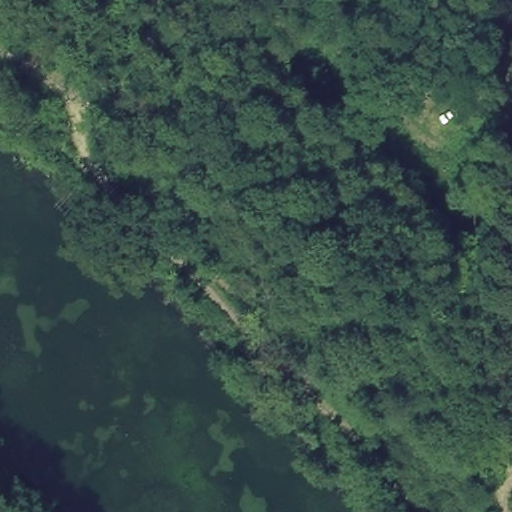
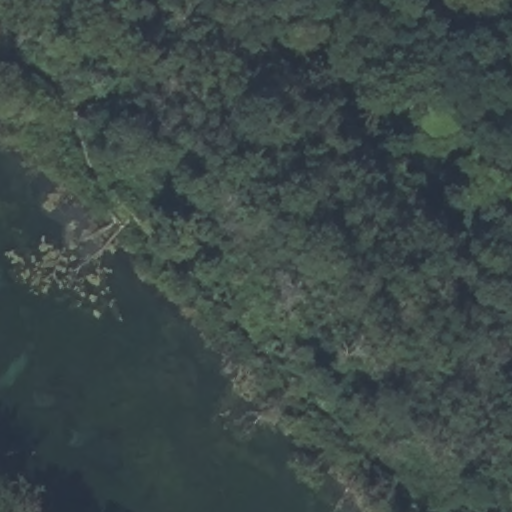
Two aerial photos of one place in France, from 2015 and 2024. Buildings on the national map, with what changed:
unchanged [(362,316),(160,86),(154,0),(262,0),(260,5),(512,279),(512,488),(362,316)]

